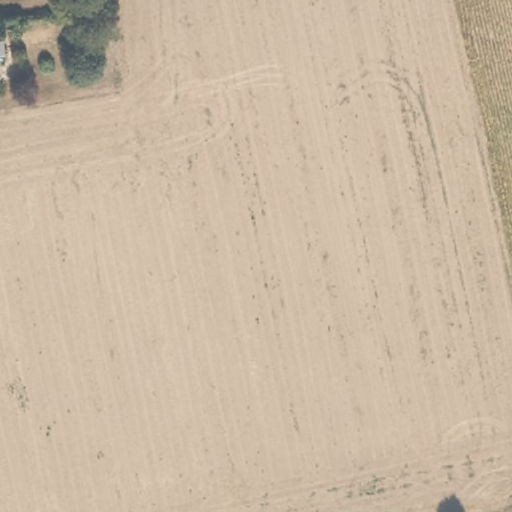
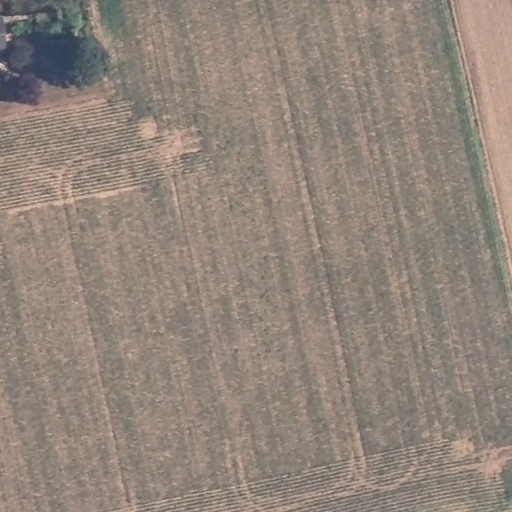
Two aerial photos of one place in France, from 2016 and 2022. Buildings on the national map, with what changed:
unchanged [(0,19),(7,19),(7,52),(0,53),(0,19)]

